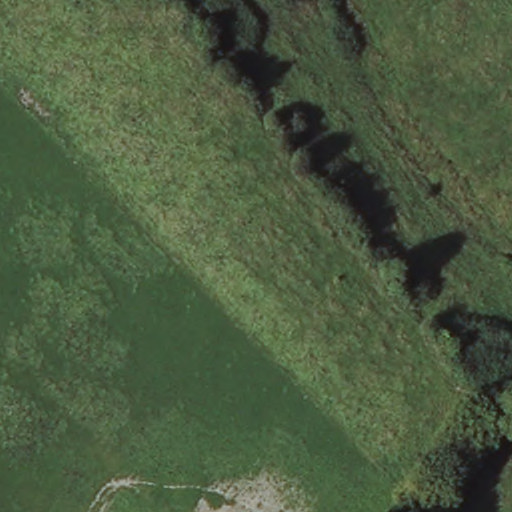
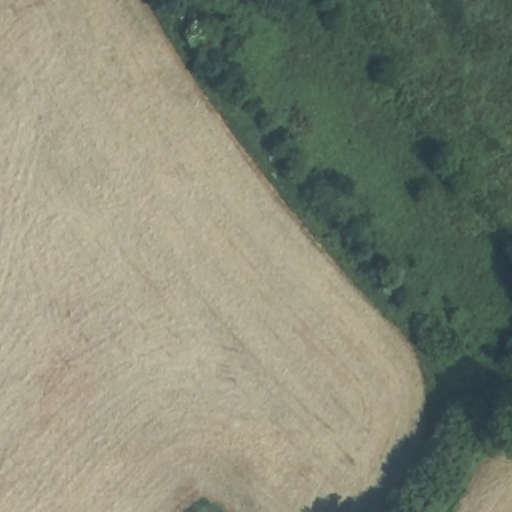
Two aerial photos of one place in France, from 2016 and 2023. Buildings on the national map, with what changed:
[]

